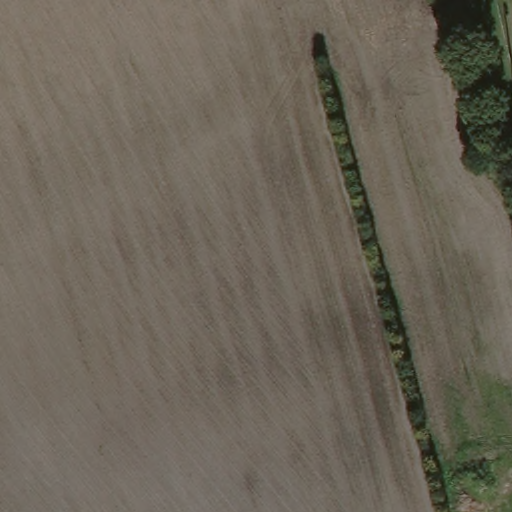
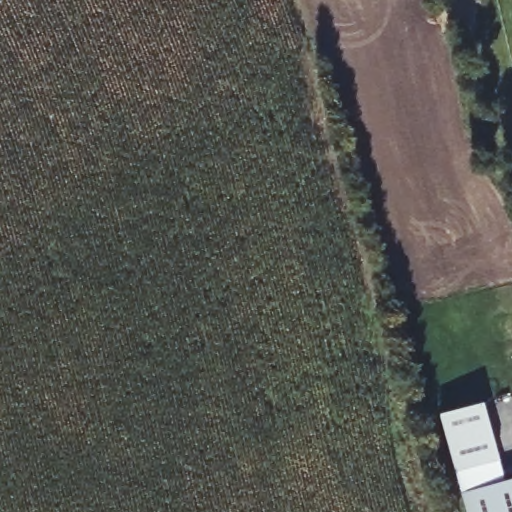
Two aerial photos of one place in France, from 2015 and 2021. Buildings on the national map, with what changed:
new [(504,482),(512,480),(512,512),(467,512),(438,416),(482,403),(498,461),(504,482)]

